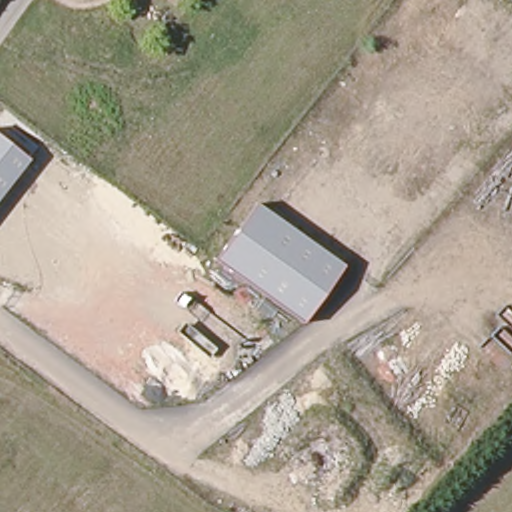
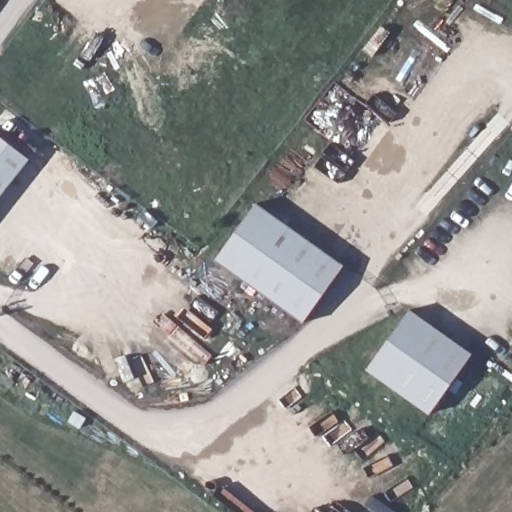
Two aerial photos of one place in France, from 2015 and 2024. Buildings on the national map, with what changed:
unchanged [(0,197),(0,137),(30,160),(0,197)]
unchanged [(304,322),(215,259),(256,203),(343,265),(304,322)]
new [(410,307),(473,352),(431,411),(368,366),(410,307)]

